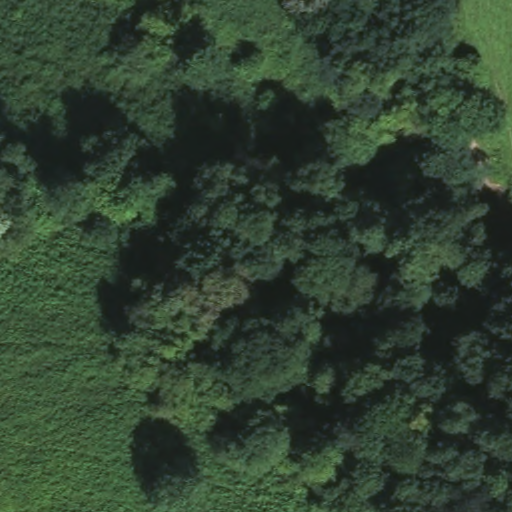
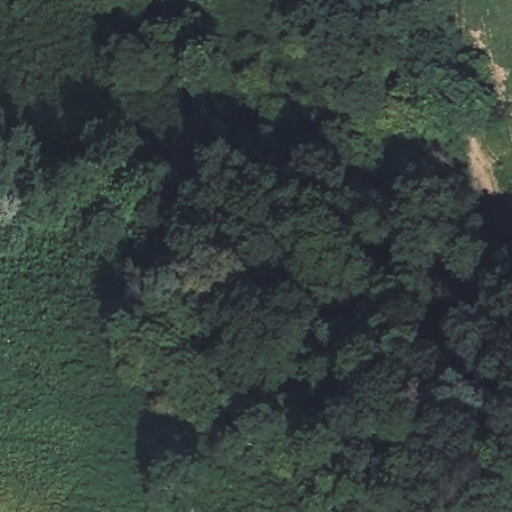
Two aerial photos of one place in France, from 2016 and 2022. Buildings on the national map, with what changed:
unchanged [(431,1),(403,9),(401,0),(431,0),(431,1)]

